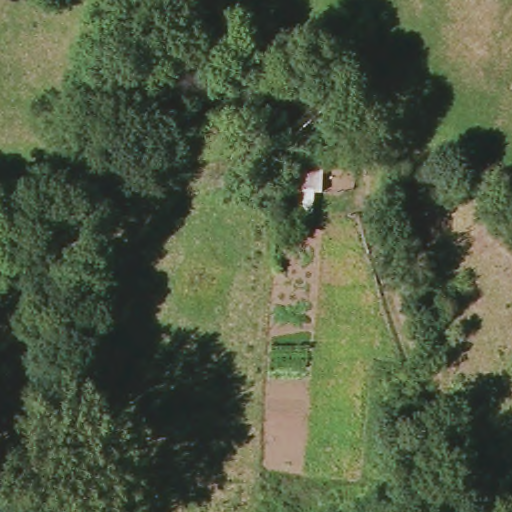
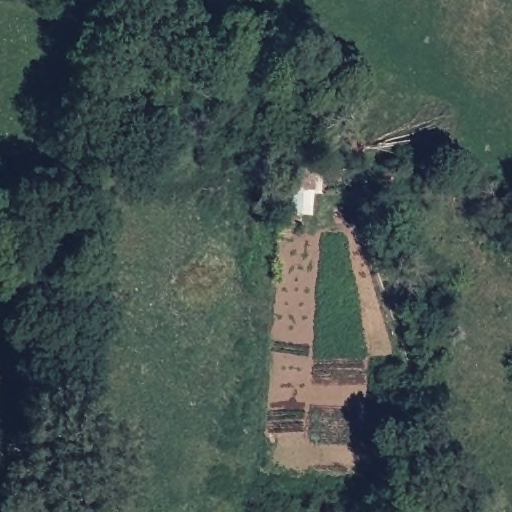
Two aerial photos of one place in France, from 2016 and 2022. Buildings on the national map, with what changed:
unchanged [(288,166),(326,170),(324,199),(316,199),(315,219),(286,217),(288,166)]

